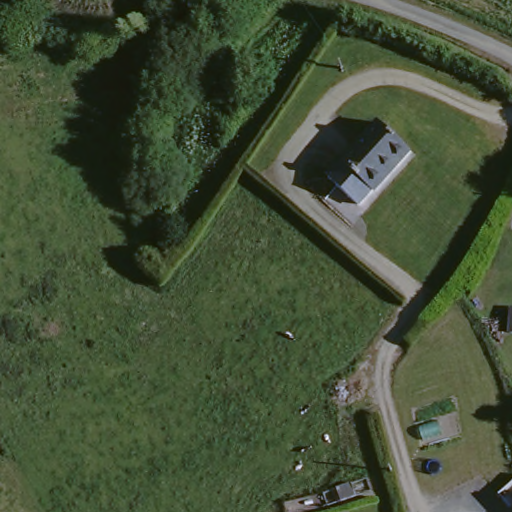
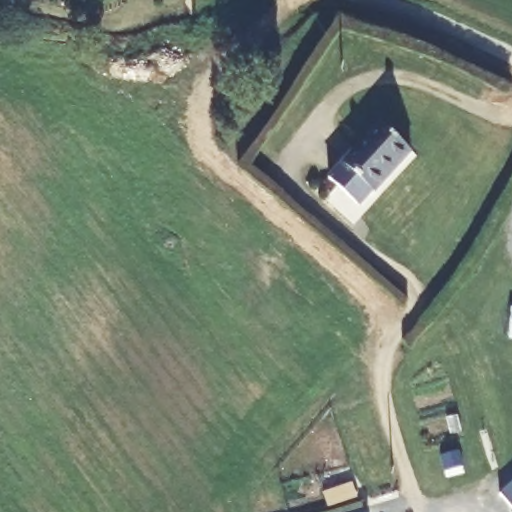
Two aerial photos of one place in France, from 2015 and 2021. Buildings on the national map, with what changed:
unchanged [(386,128),(414,161),(400,172),(394,172),(369,196),(342,164),(386,128)]

